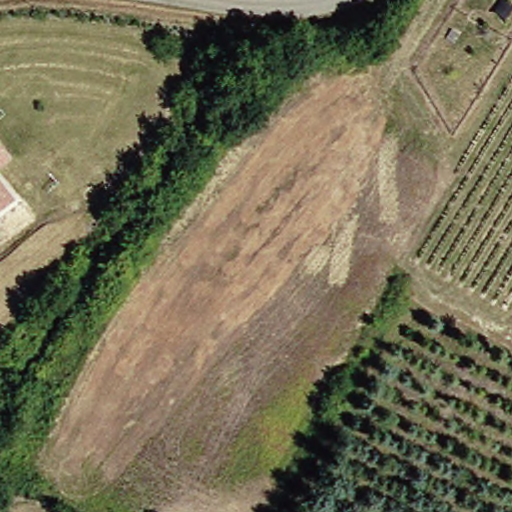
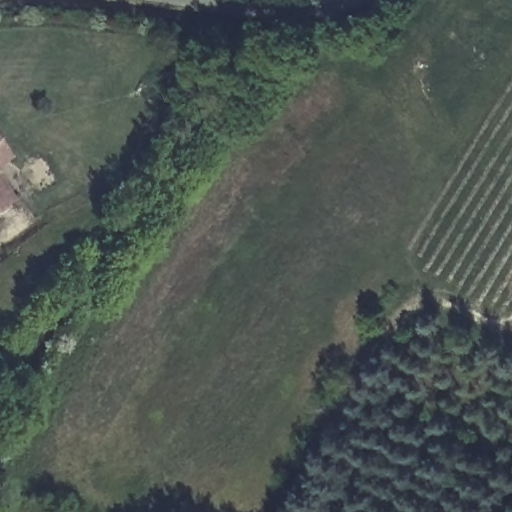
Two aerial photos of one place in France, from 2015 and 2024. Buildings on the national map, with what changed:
unchanged [(21,156),(0,175),(0,130),(21,156)]
unchanged [(17,195),(0,208),(0,175),(17,195)]

